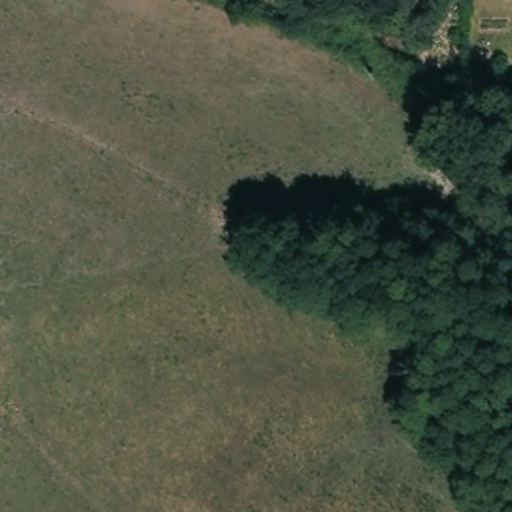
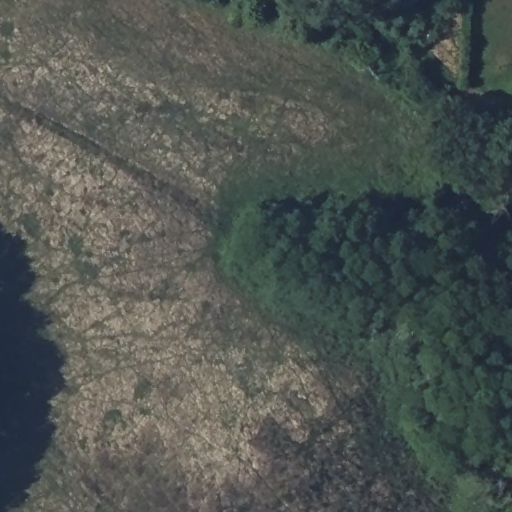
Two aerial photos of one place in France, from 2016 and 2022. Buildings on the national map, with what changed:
unchanged [(331,24),(319,13),(328,5),(339,15),(331,24)]

